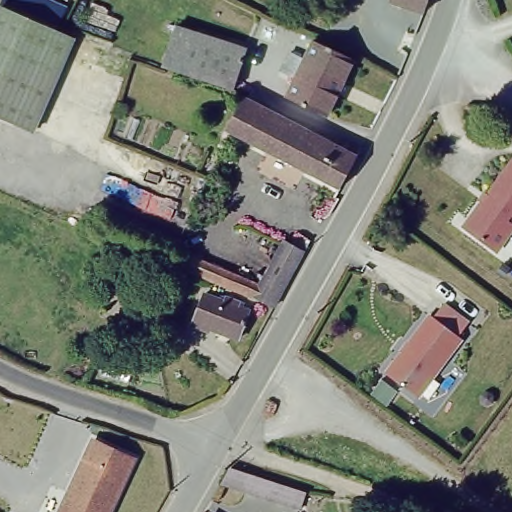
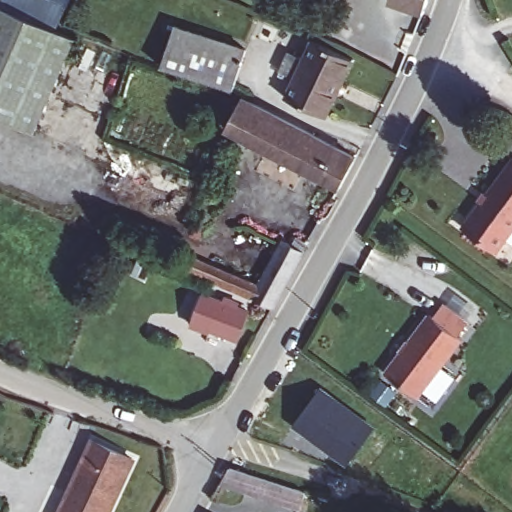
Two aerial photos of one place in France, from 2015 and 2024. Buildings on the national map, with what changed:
unchanged [(55,27),(72,35),(29,127),(0,113),(0,4),(2,0),(12,6),(55,27)]
unchanged [(393,0),(427,0),(425,10),(393,0)]
unchanged [(174,22),(244,44),(232,84),(161,65),(174,22)]
unchanged [(328,110),(287,91),(296,73),(280,66),(290,47),(305,54),(313,38),(352,54),(328,110)]
unchanged [(224,129),(238,96),(350,145),(337,177),(227,131),(224,129)]
unchanged [(502,244),(470,219),(510,165),(512,162),(512,230),(502,244)]
unchanged [(190,260),(257,281),(282,236),(294,241),(301,228),(311,233),(282,287),(275,300),(197,275),(185,271),(190,260)]
unchanged [(220,294),(232,297),(231,302),(244,306),(237,333),(210,325),(207,329),(189,325),(198,294),(218,298),(220,294)]
unchanged [(434,307),(439,310),(449,298),(472,318),(463,329),(465,332),(422,390),(389,365),(434,307)]
new [(322,386),(375,426),(347,465),(294,425),(322,386)]
unchanged [(106,512),(60,512),(93,438),(131,453),(106,512)]
unchanged [(302,503),(265,493),(221,480),(227,466),(270,477),(305,487),(302,503)]
unchanged [(217,512),(205,512),(207,507),(217,512)]

